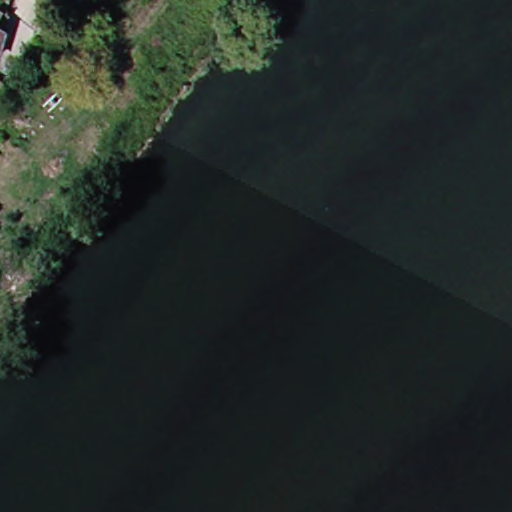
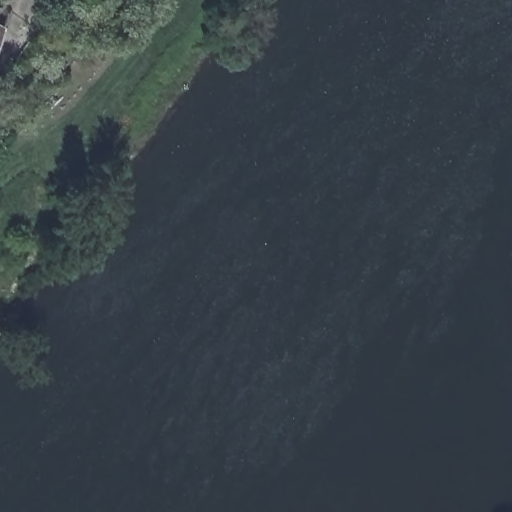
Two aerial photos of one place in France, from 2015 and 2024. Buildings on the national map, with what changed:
unchanged [(19,6),(0,59),(0,0),(21,0),(19,6)]

